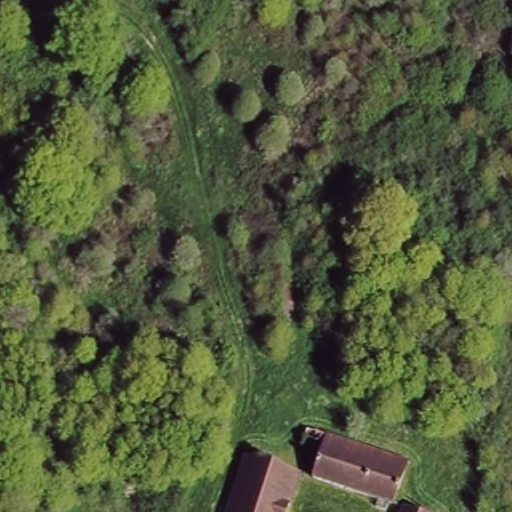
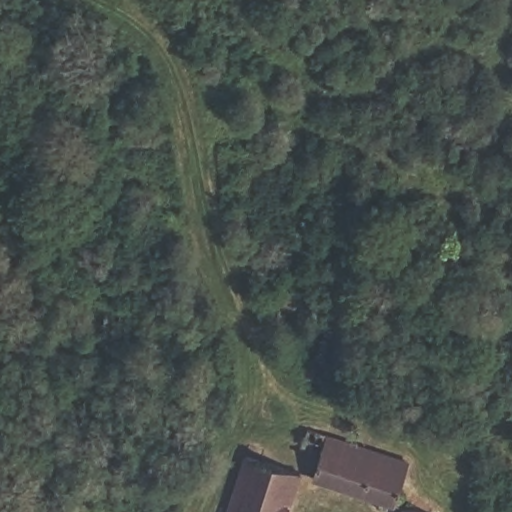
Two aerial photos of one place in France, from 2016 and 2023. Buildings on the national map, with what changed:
unchanged [(410,462),(397,503),(319,478),(327,452),(309,446),(314,431),(317,433),(410,462)]
unchanged [(231,512),(255,453),(268,458),(265,467),(302,482),(289,512),(231,512)]
unchanged [(407,512),(412,499),(442,508),(441,512),(407,512)]

